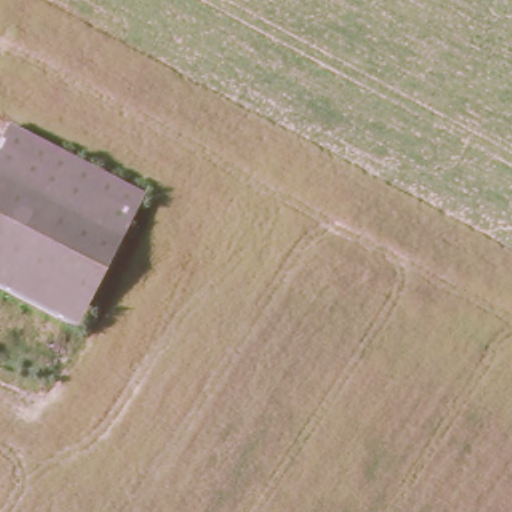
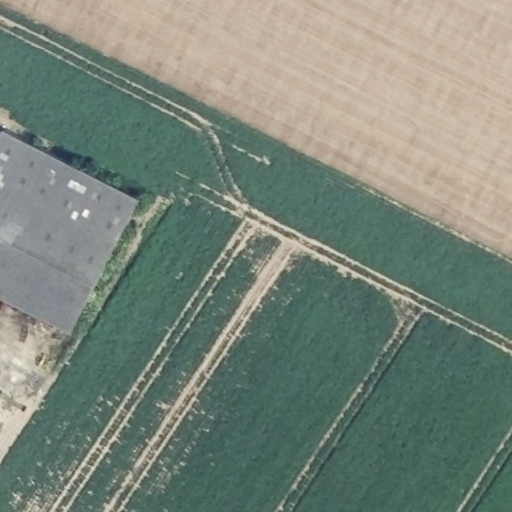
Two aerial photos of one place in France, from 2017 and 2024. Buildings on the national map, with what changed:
unchanged [(0,139),(6,127),(140,194),(76,325),(0,288),(0,139)]

